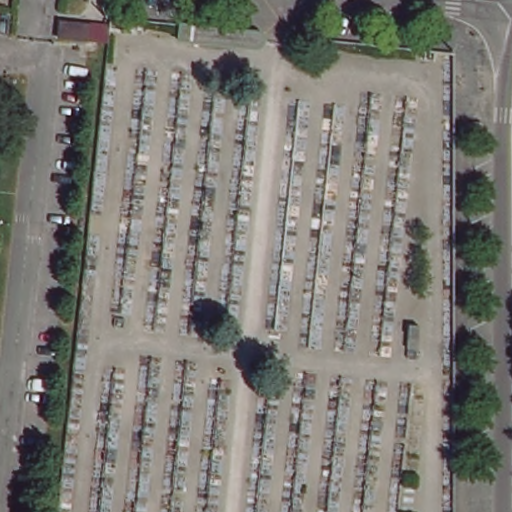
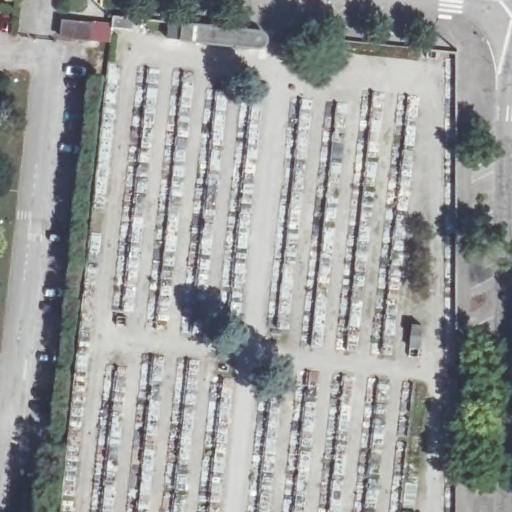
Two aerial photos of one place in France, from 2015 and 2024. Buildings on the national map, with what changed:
unchanged [(58,34),(58,19),(108,24),(107,30),(106,38),(58,34)]
unchanged [(258,45),(199,37),(202,23),(260,30),(258,45)]

